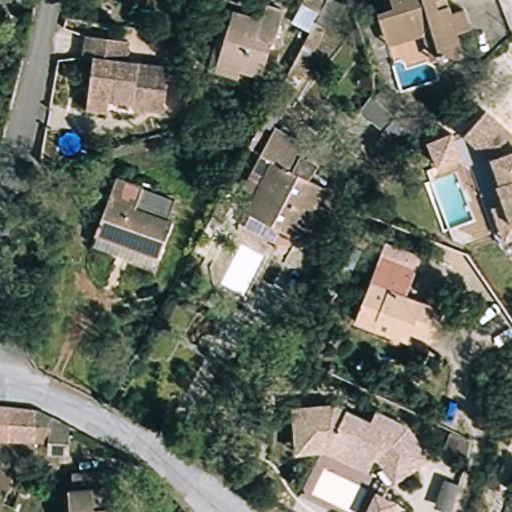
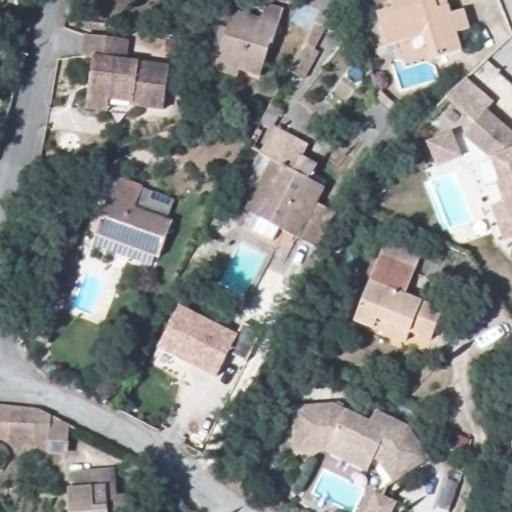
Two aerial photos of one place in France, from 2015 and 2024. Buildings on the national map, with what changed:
unchanged [(381,7),(380,3),(389,0),(439,0),(433,2),(438,16),(463,7),(471,28),(461,32),(467,49),(442,58),(427,21),(378,39),(368,12),(381,7)]
unchanged [(320,13),(306,38),(294,31),(307,6),(320,13)]
unchanged [(277,25),(264,54),(260,52),(245,81),(208,65),(232,15),(248,21),(251,13),(277,25)]
unchanged [(90,102),(91,81),(91,64),(85,64),(85,46),(85,39),(120,39),(121,46),(123,62),(164,63),(163,96),(121,95),(121,103),(90,102)]
unchanged [(274,99),(263,118),(251,111),(260,93),(274,99)]
unchanged [(493,200),(505,196),(500,178),(503,177),(494,147),(491,148),(469,126),(493,103),(512,122),(512,232),(503,234),(493,200)]
unchanged [(371,135),(387,112),(406,123),(390,146),(371,135)]
unchanged [(266,222),(234,205),(255,172),(236,158),(255,129),(301,157),(291,172),(310,183),(301,200),(316,209),(298,240),(291,251),(259,234),(266,222)]
unchanged [(452,129),(460,152),(437,161),(428,137),(452,129)]
unchanged [(89,242),(94,228),(115,174),(171,194),(165,214),(173,217),(160,253),(155,264),(89,242)]
unchanged [(417,254),(403,293),(369,282),(383,241),(417,254)]
unchanged [(368,326),(349,319),(363,280),(369,282),(403,293),(440,306),(431,335),(407,327),(404,338),(368,326)]
new [(173,300),(230,329),(237,316),(255,326),(240,356),(222,347),(210,370),(152,341),(173,300)]
unchanged [(286,403),(328,400),(364,418),(370,407),(401,422),(421,454),(385,477),(370,454),(366,452),(321,431),(289,433),(286,403)]
unchanged [(70,422),(67,444),(0,439),(0,405),(35,408),(70,422)]
unchanged [(321,431),(366,452),(359,466),(318,446),(290,448),(289,433),(321,431)]
unchanged [(108,482),(103,483),(103,498),(135,496),(136,512),(76,512),(73,485),(81,485),(82,462),(107,461),(108,482)]
unchanged [(386,498),(379,512),(354,512),(366,488),(386,498)]

